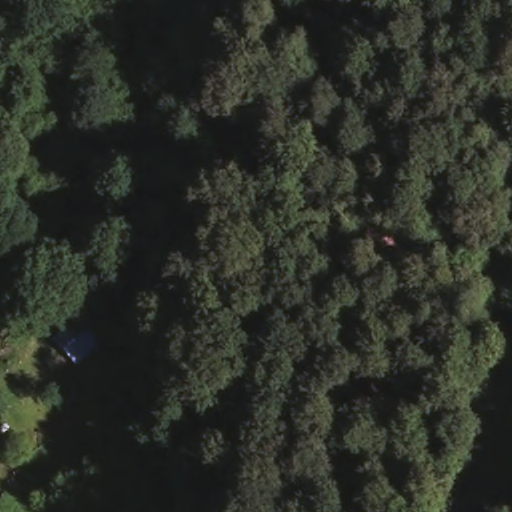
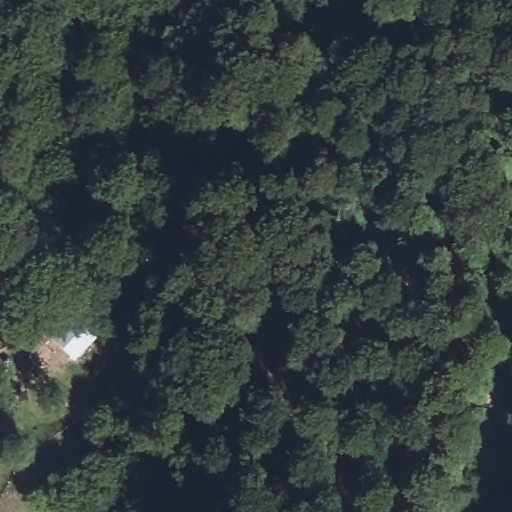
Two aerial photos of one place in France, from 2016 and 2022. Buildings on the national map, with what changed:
unchanged [(90,336),(65,356),(42,330),(66,310),(90,336)]

